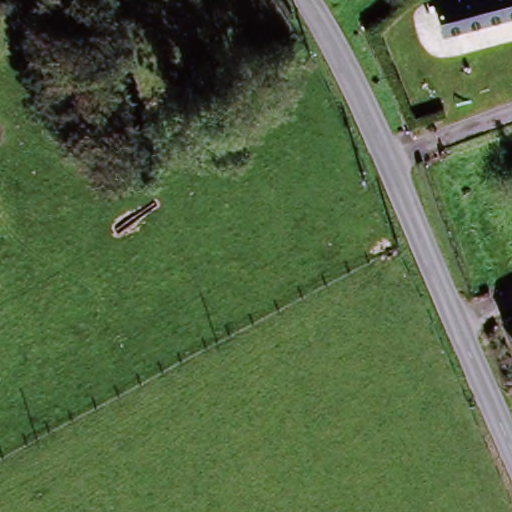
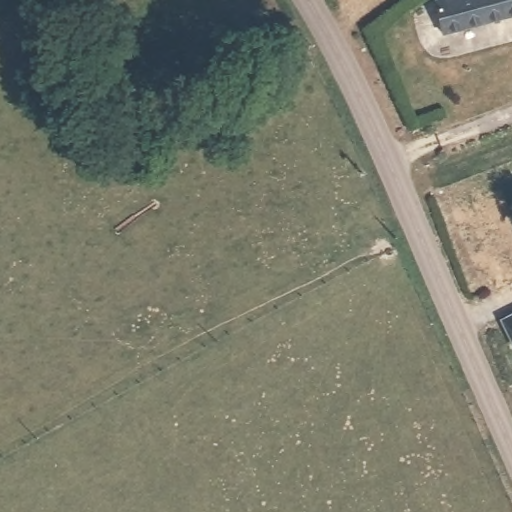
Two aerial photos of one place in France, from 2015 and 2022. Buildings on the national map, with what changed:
unchanged [(438,2),(450,0),(512,0),(512,21),(445,36),(438,2)]
unchanged [(501,330),(512,325),(512,352),(511,352),(501,330)]

